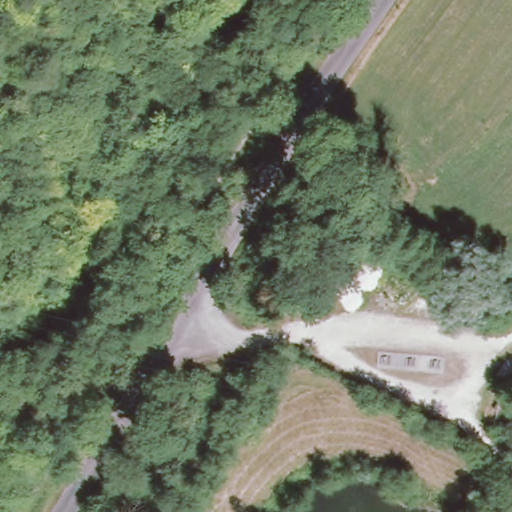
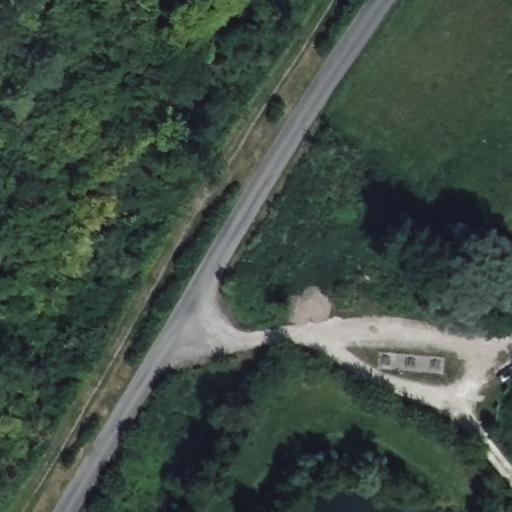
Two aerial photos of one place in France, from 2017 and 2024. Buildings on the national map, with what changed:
unchanged [(158,166),(164,173),(155,181),(148,174),(158,166)]

